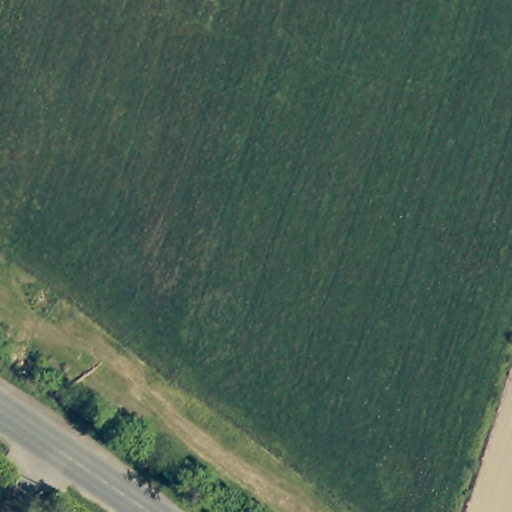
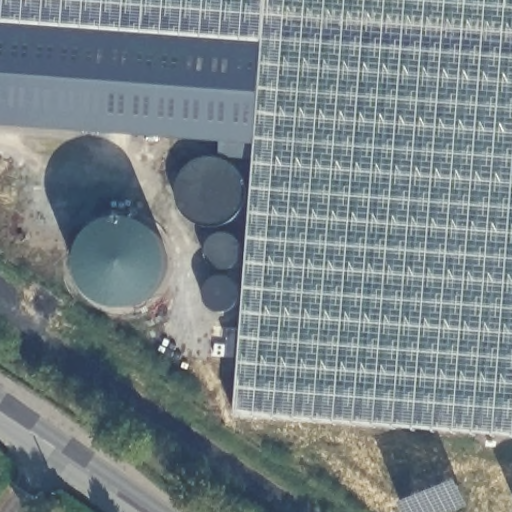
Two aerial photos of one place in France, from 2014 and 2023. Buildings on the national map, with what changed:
new [(262,37),(0,18),(0,0),(512,0),(512,435),(237,414),(254,157),(262,37)]
new [(262,37),(254,157),(219,154),(219,140),(0,124),(0,18),(262,37)]

